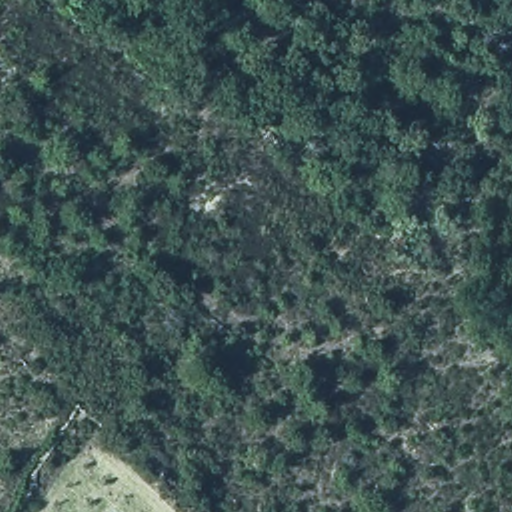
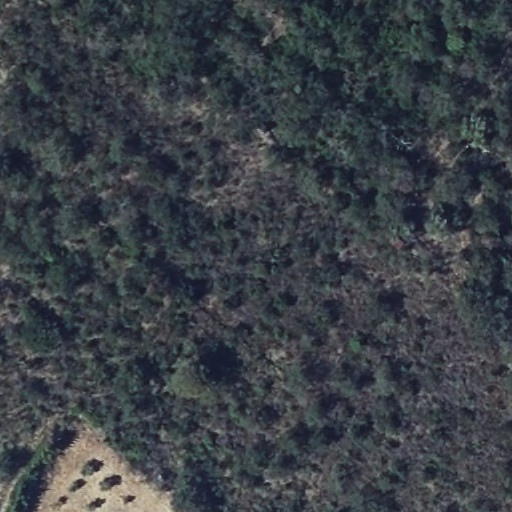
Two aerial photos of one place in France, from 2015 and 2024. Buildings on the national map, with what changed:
unchanged [(402,241),(394,251),(385,244),(394,233),(402,241)]

